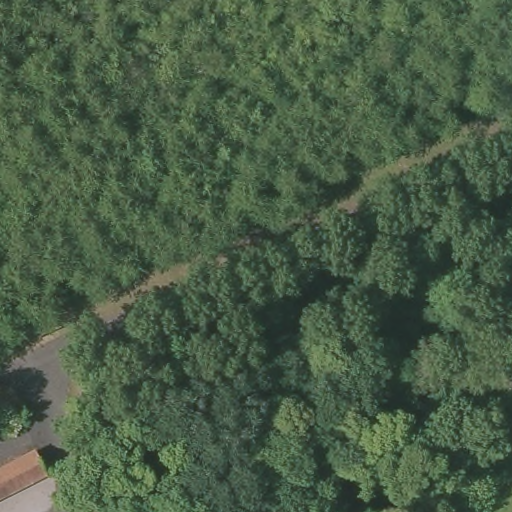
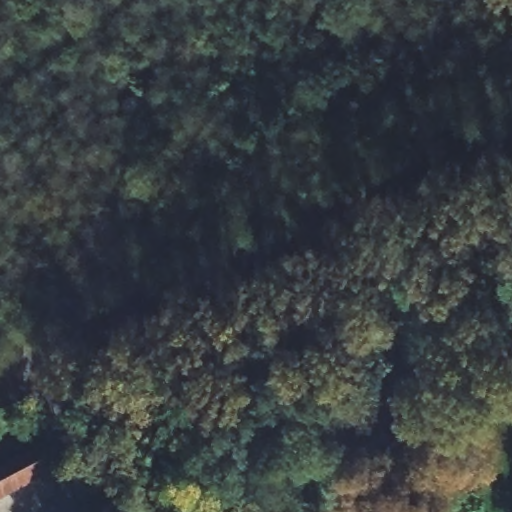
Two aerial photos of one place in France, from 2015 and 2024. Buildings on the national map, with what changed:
unchanged [(48,485),(0,511),(0,477),(38,460),(48,485)]

